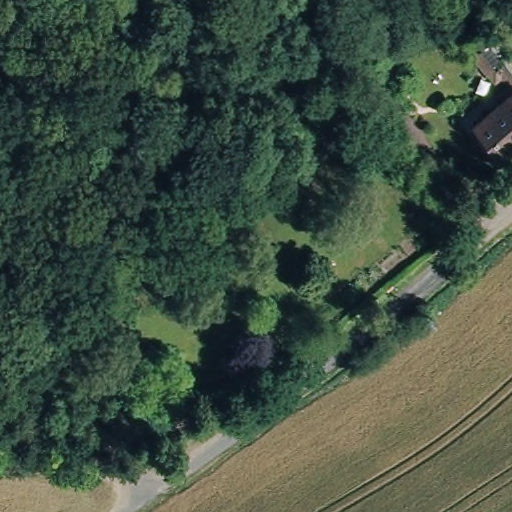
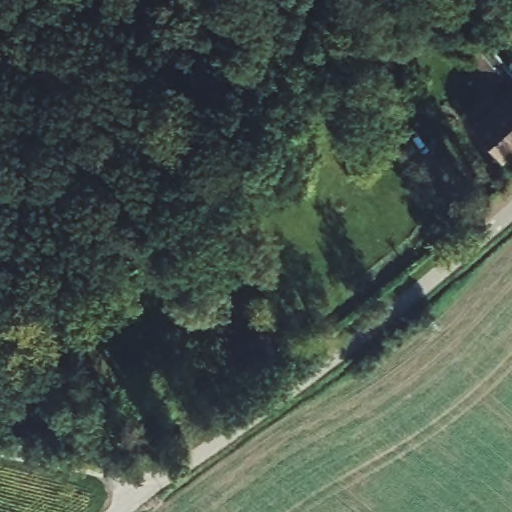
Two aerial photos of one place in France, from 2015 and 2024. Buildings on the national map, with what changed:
unchanged [(470,137),(492,119),(495,122),(498,119),(490,109),(503,99),(490,84),(486,86),(463,58),(474,49),(512,94),(512,169),(502,176),(470,137)]
unchanged [(355,77),(402,136),(388,148),(341,88),(355,77)]

